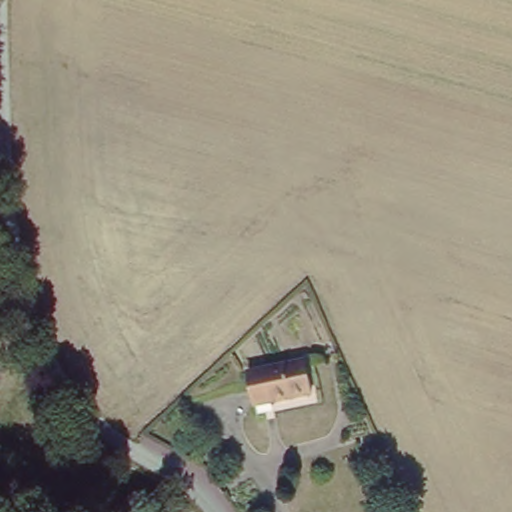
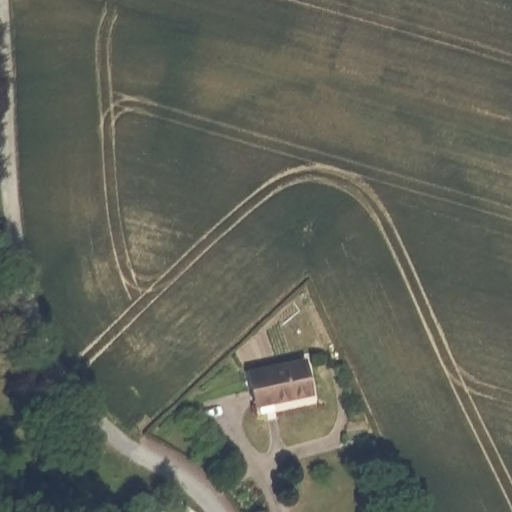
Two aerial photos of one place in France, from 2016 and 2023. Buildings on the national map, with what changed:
unchanged [(301,360),(305,395),(252,402),(247,365),(301,360)]

